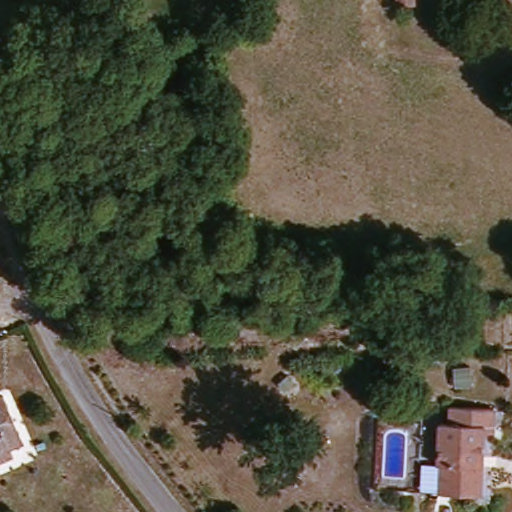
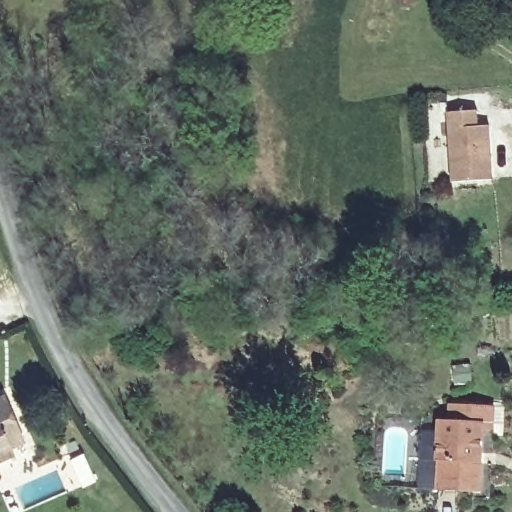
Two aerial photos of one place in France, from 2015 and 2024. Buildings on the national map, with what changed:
new [(447,112),(477,111),(477,126),(490,125),(494,180),(451,182),(447,112)]
unchanged [(7,395),(27,437),(16,444),(19,453),(5,458),(0,457),(0,398),(7,395)]
unchanged [(432,460),(438,460),(441,420),(452,421),(453,402),(501,406),(500,428),(486,427),(485,483),(471,482),(471,494),(443,493),(431,493),(432,460)]

